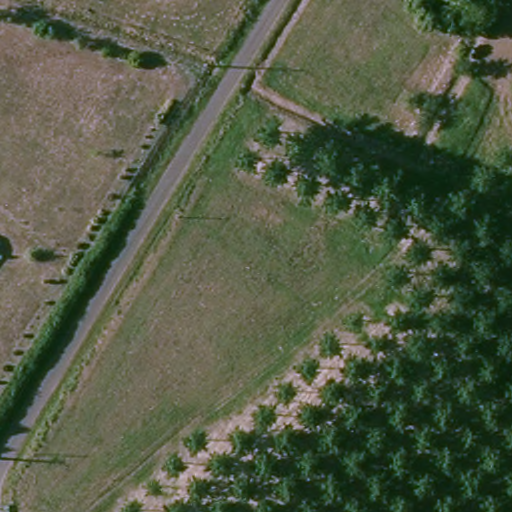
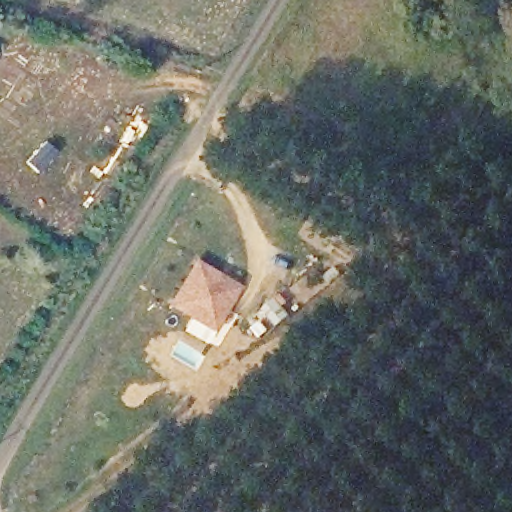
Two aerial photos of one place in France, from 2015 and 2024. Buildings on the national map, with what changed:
new [(196,257),(241,285),(207,343),(184,330),(191,317),(168,304),(196,257)]

